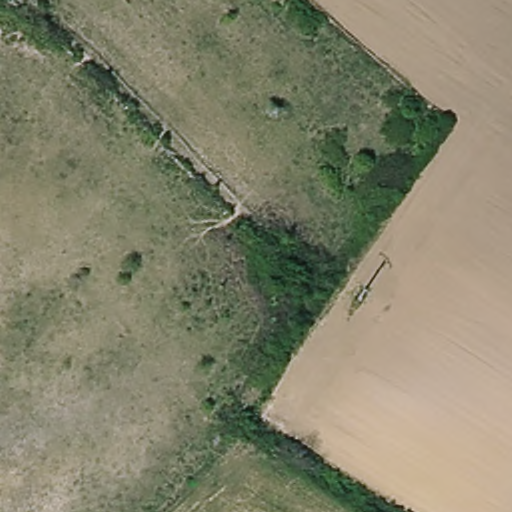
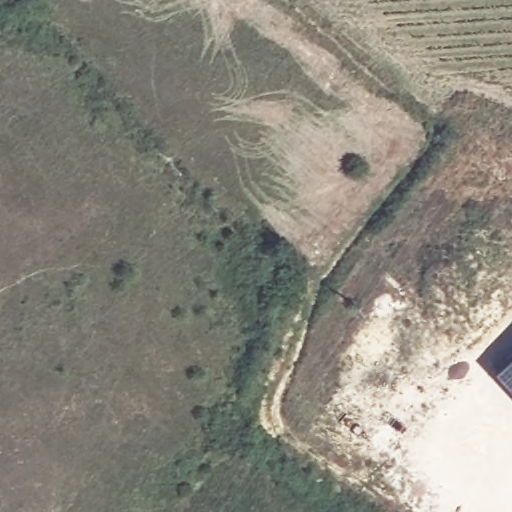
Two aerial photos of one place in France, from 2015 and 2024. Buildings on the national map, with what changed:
new [(512,359),(512,390),(496,373),(512,359)]

